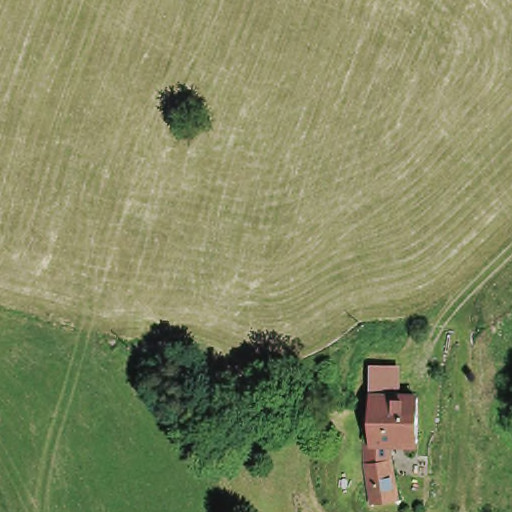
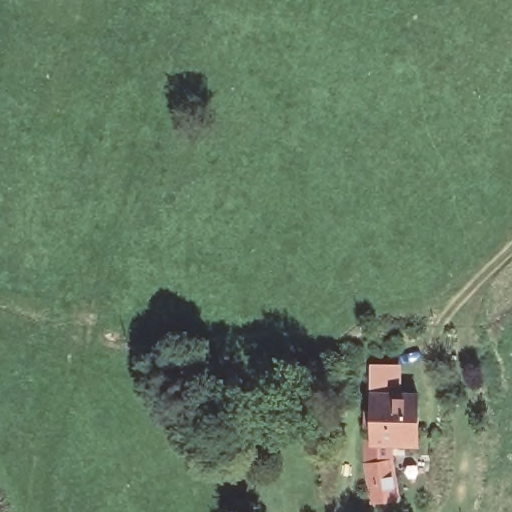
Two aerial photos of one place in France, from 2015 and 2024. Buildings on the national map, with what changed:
unchanged [(378,435),(378,387),(425,387),(425,435),(397,435),(397,442),(397,452),(403,491),(380,495),(373,456),(378,455),(378,443),(378,435)]

